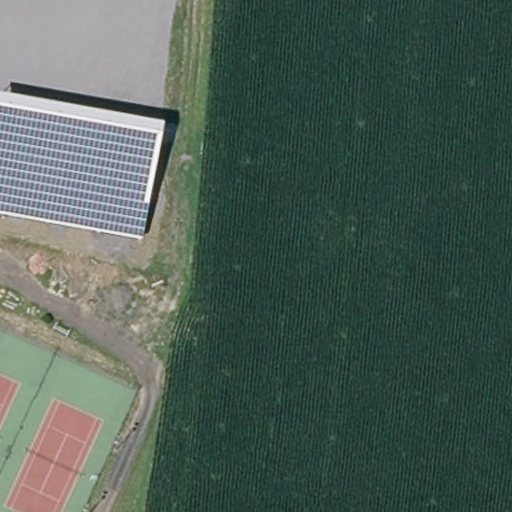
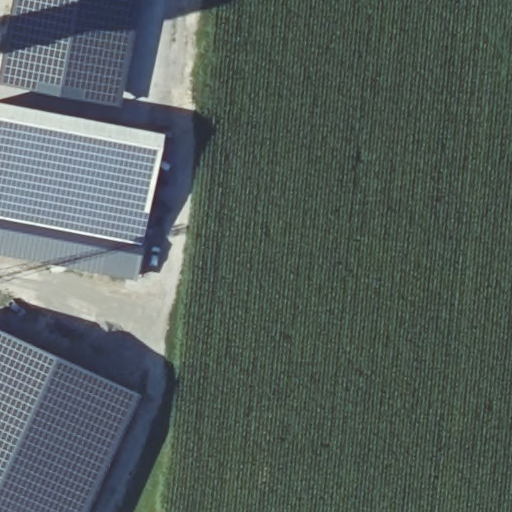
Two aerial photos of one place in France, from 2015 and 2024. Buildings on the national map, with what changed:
new [(12,0),(139,0),(119,105),(0,83),(0,75),(5,55),(12,0)]
unchanged [(0,216),(0,100),(163,130),(142,241),(0,216)]
new [(52,350),(140,390),(83,512),(0,512),(0,327),(52,350)]

